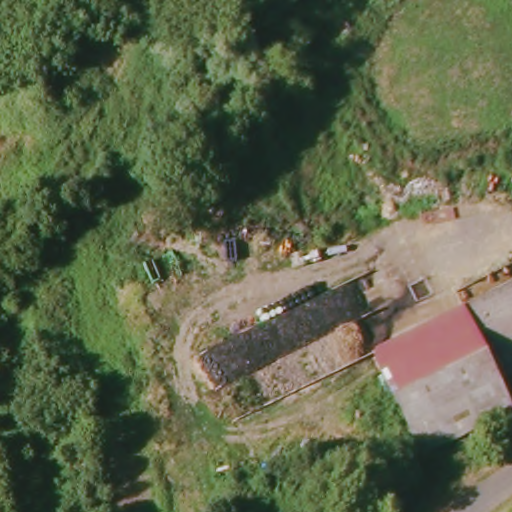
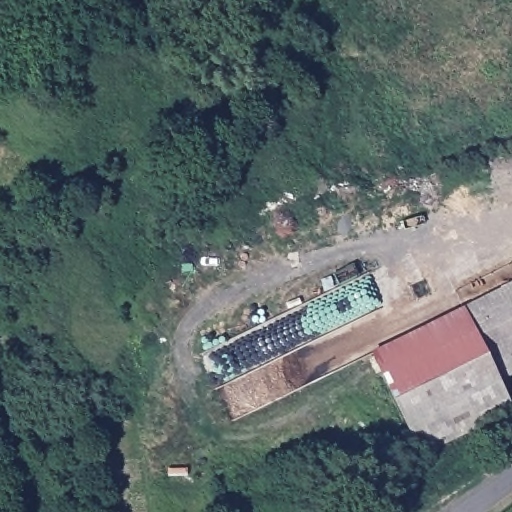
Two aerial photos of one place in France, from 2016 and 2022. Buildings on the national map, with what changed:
unchanged [(512,277),(512,403),(419,451),(369,354),(383,345),(512,277)]

